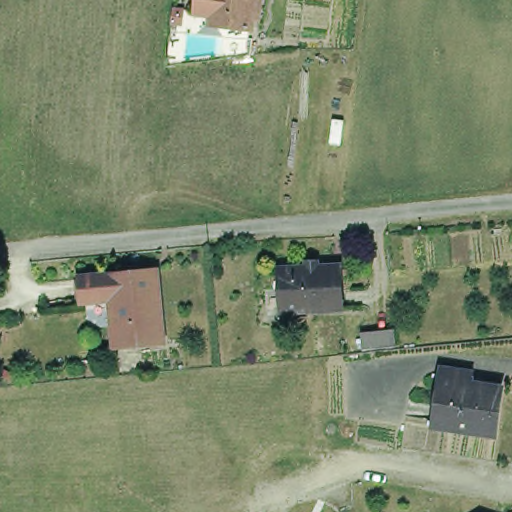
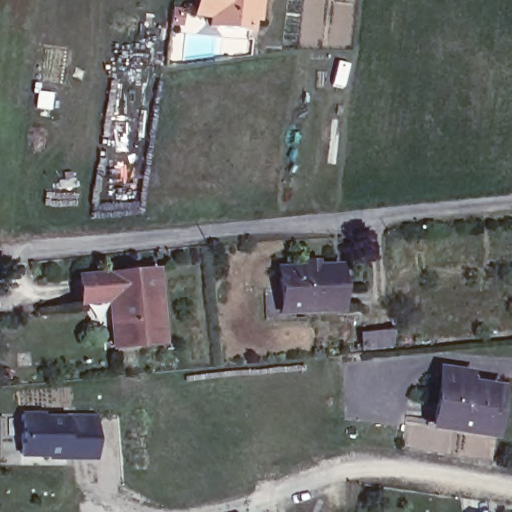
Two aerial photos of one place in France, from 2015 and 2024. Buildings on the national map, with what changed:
unchanged [(257,0),(254,31),(211,26),(213,14),(196,12),(197,0),(257,0)]
unchanged [(268,321),(267,288),(283,287),(283,267),(346,266),(347,312),(301,313),(301,320),(268,321)]
unchanged [(81,300),(76,301),(73,276),(153,267),(163,338),(115,344),(111,326),(85,329),(81,300)]
unchanged [(392,333),(393,347),(361,350),(360,336),(392,333)]
unchanged [(464,376),(461,386),(497,392),(491,436),(429,427),(437,373),(464,376)]
new [(13,417),(36,417),(36,421),(58,422),(58,419),(88,419),(88,460),(58,460),(58,457),(13,457),(13,417)]

